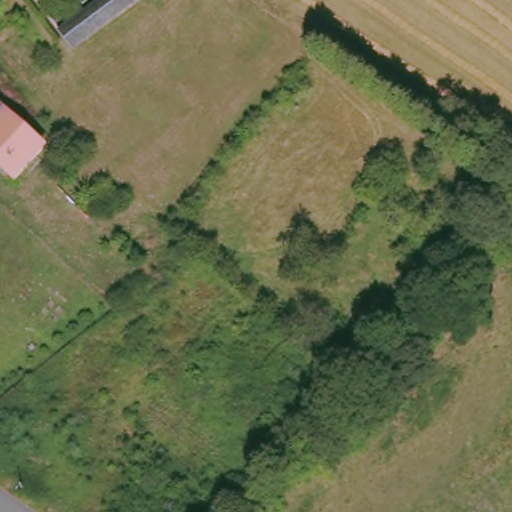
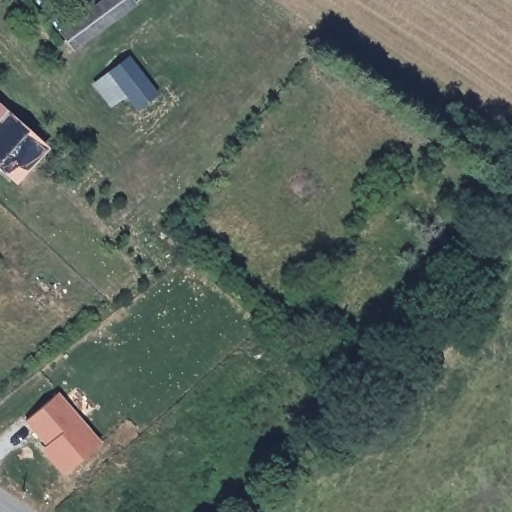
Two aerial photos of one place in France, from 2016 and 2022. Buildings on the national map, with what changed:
unchanged [(59,31),(99,0),(133,0),(135,3),(72,49),(59,31)]
new [(131,56),(160,94),(135,113),(125,100),(110,109),(93,85),(131,56)]
unchanged [(21,174),(0,157),(0,113),(43,144),(21,174)]
new [(45,447),(25,422),(60,394),(100,442),(64,474),(41,451),(45,447)]

